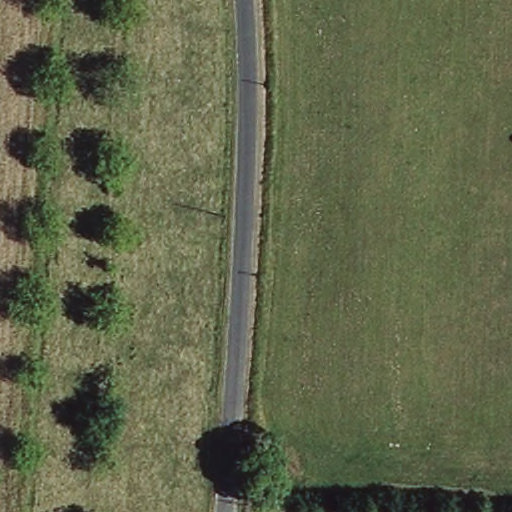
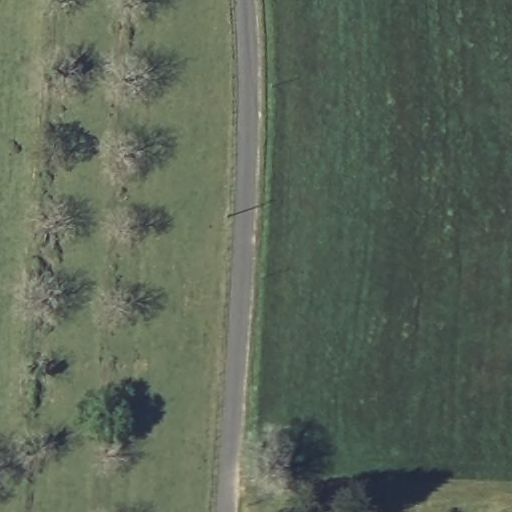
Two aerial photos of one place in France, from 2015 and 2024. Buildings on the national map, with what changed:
[]

